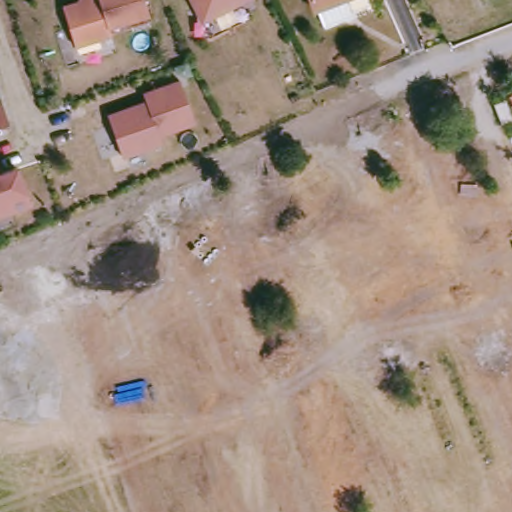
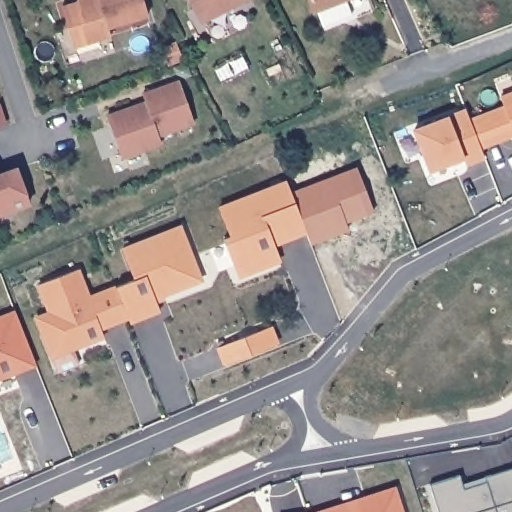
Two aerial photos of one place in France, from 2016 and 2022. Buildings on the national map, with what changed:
unchanged [(86,0),(143,0),(149,16),(109,27),(112,36),(75,47),(63,7),(86,0)]
unchanged [(202,22),(193,4),(194,0),(247,0),(202,22)]
unchanged [(310,0),(346,0),(351,13),(323,24),(316,7),(314,8),(310,0)]
unchanged [(137,105),(139,109),(147,106),(144,94),(180,81),(195,123),(159,135),(162,143),(122,157),(107,116),(137,105)]
new [(471,118),(484,113),(504,105),(501,96),(512,92),(512,143),(498,148),(484,154),(471,118)]
new [(485,157),(466,164),(464,157),(430,170),(415,129),(466,109),(485,157)]
unchanged [(29,203),(0,214),(0,174),(17,168),(29,203)]
new [(307,231),(256,251),(262,267),(239,276),(224,239),(231,236),(220,207),(287,181),(307,231)]
new [(179,269),(185,286),(155,298),(160,310),(130,322),(116,286),(135,279),(122,248),(181,226),(195,263),(179,269)]
new [(280,260),(262,267),(256,251),(274,244),(280,260)]
new [(39,284),(78,269),(89,297),(116,287),(128,317),(101,328),(104,336),(79,346),(78,342),(72,345),(74,348),(73,348),(80,365),(58,373),(44,336),(57,330),(50,312),(39,284)]
new [(12,368),(14,373),(0,379),(0,316),(16,310),(36,360),(12,368)]
new [(57,330),(44,336),(37,318),(51,312),(57,330)]
new [(219,347),(245,337),(271,327),(277,344),(252,354),(226,364),(219,347)]
new [(460,474),(464,488),(486,481),(484,476),(512,467),(512,501),(512,503),(512,512),(438,512),(430,484),(460,474)]
new [(335,512),(397,492),(403,512),(335,512)]
new [(325,512),(316,512),(324,509),(325,512)]

